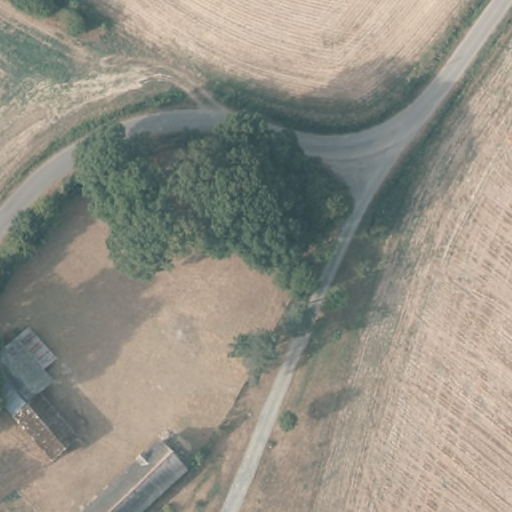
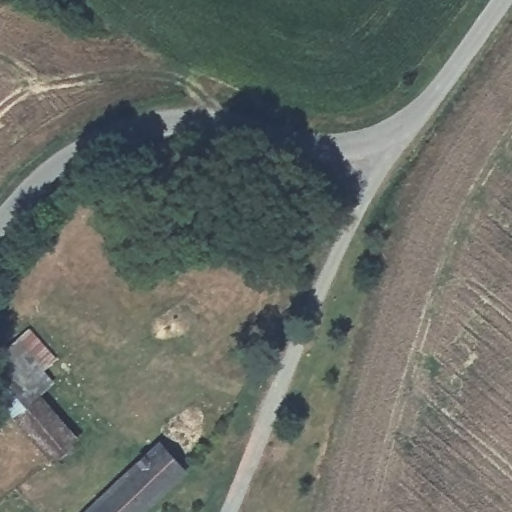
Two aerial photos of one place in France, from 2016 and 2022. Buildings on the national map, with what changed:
unchanged [(13,365),(27,352),(65,391),(49,406),(13,365)]
unchanged [(27,427),(0,398),(0,377),(13,365),(49,406),(27,427)]
unchanged [(89,451),(68,472),(27,427),(49,406),(89,451)]
unchanged [(186,466),(140,512),(90,512),(163,441),(186,466)]

